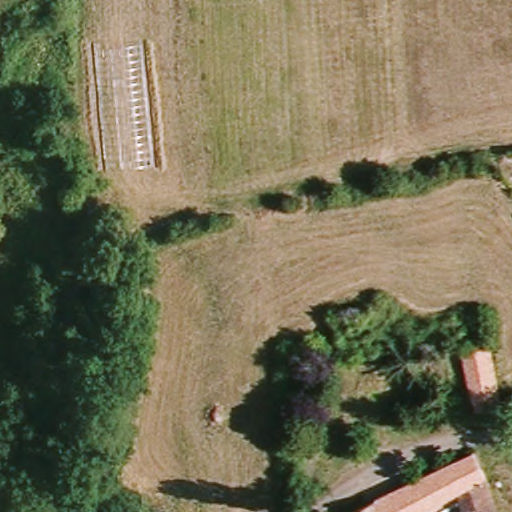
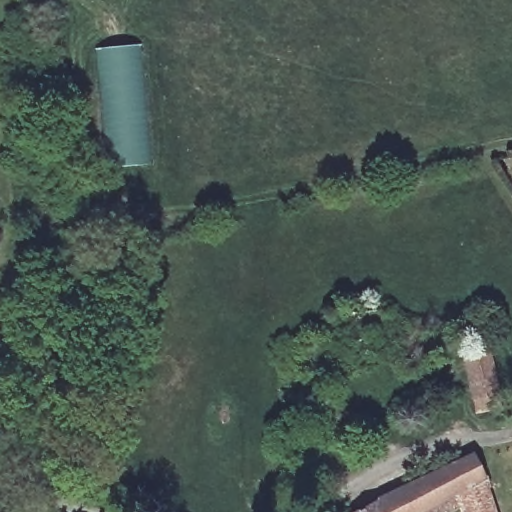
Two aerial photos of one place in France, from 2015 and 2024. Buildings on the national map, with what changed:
new [(95,46),(141,41),(153,164),(107,168),(95,46)]
unchanged [(477,418),(461,360),(486,352),(500,410),(477,418)]
unchanged [(461,512),(460,512),(362,512),(467,456),(478,476),(487,512),(462,512),(461,512)]

